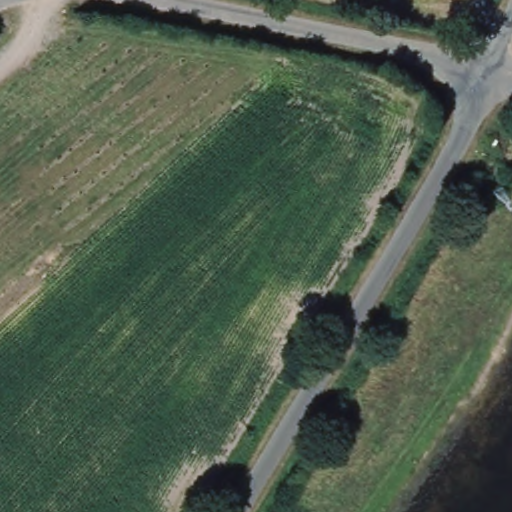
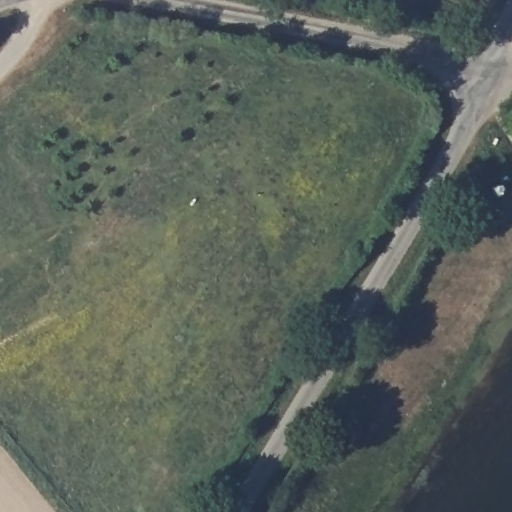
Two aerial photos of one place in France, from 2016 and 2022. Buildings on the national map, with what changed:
[]

